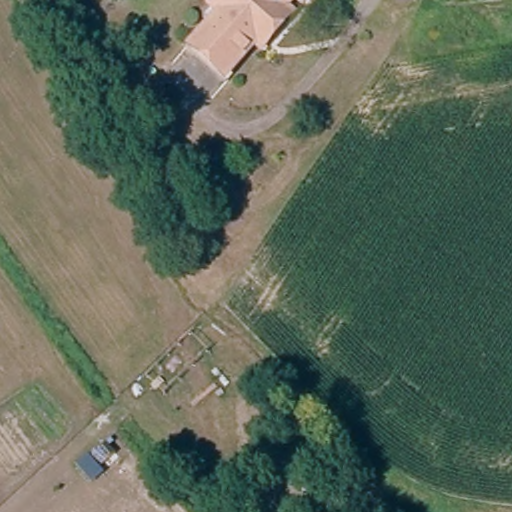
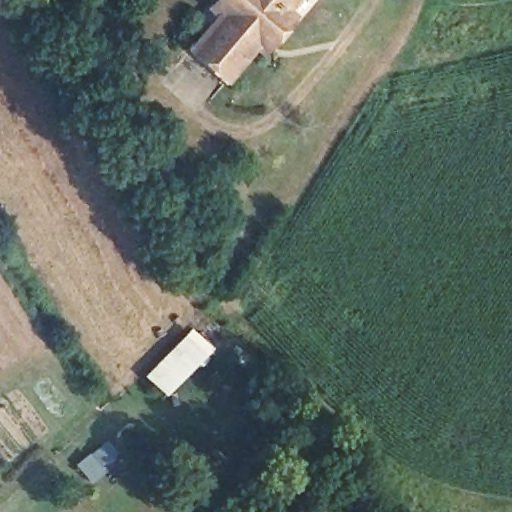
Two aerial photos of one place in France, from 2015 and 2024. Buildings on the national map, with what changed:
unchanged [(284,10),(292,17),(263,51),(255,45),(225,81),(188,51),(218,12),(210,6),(215,0),(292,0),(284,10)]
new [(163,396),(143,377),(190,330),(211,350),(163,396)]

